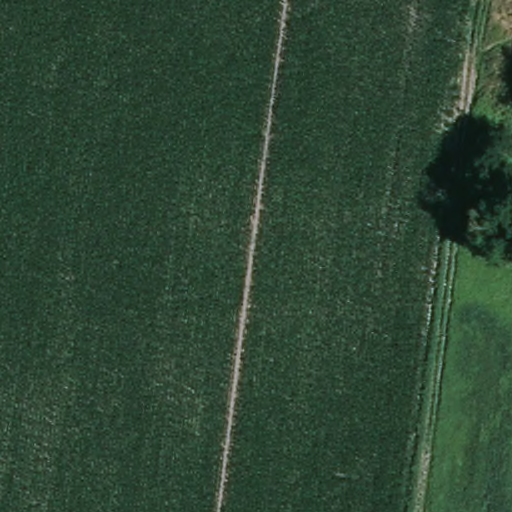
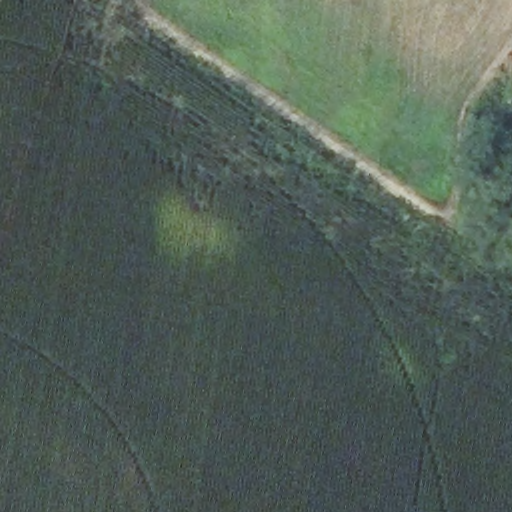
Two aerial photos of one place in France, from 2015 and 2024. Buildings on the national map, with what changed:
[]

